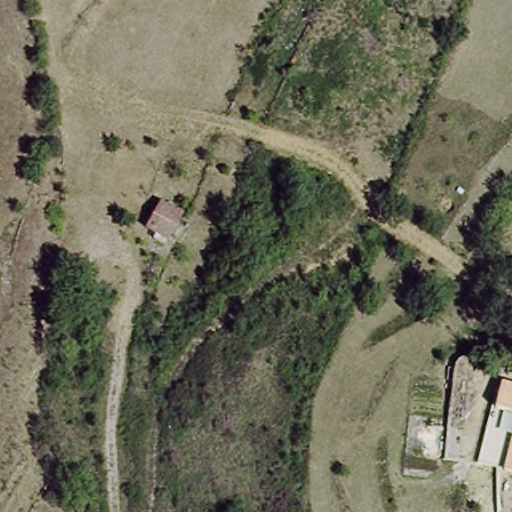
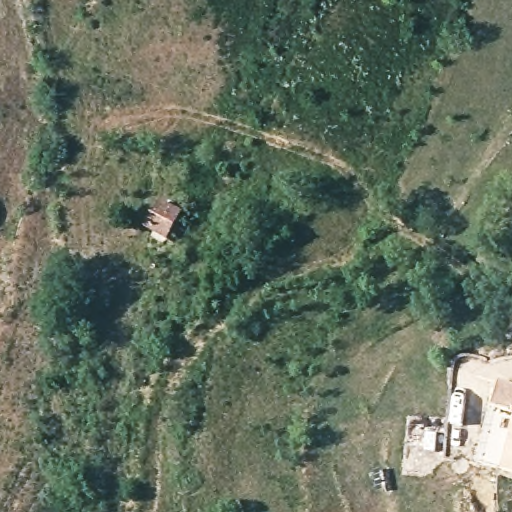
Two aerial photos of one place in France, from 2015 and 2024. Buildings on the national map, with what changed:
unchanged [(186,221),(169,246),(143,229),(162,203),(186,221)]
unchanged [(503,382),(512,386),(512,414),(498,410),(503,382)]
unchanged [(504,470),(512,433),(512,473),(504,470)]

